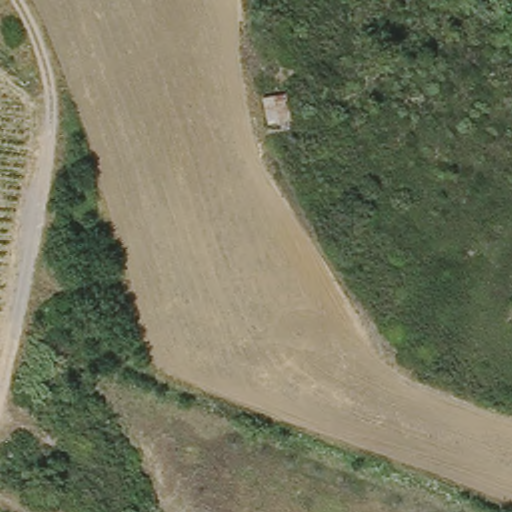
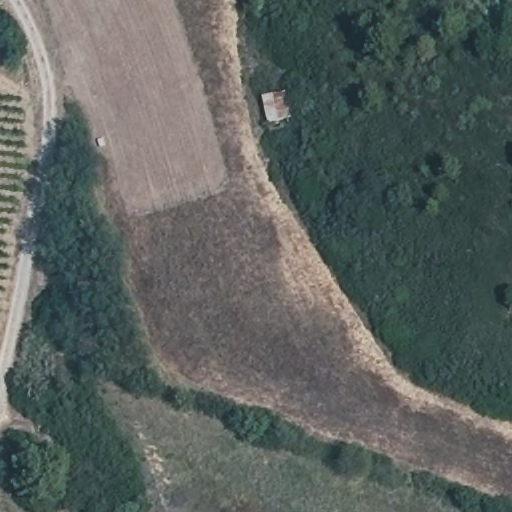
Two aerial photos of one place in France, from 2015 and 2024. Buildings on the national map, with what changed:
unchanged [(265,100),(286,96),(291,124),(270,127),(265,100)]

